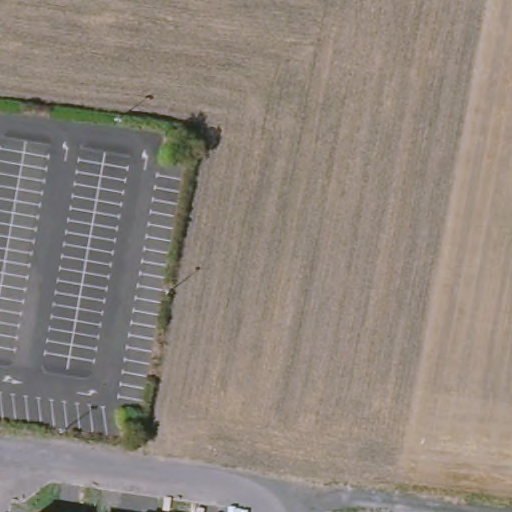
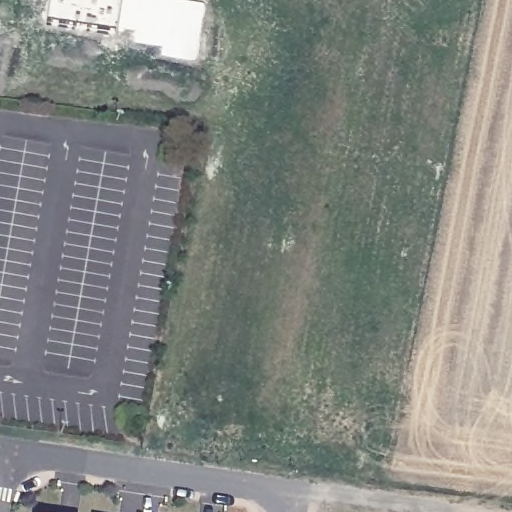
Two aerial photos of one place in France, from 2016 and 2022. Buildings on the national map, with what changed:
new [(195,62),(158,57),(162,46),(40,27),(46,0),(193,0),(205,2),(195,62)]

